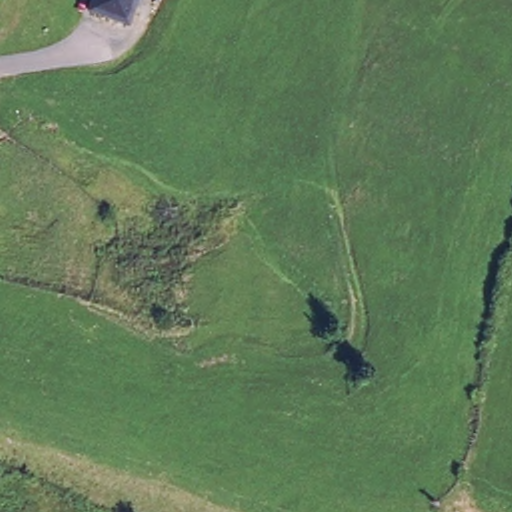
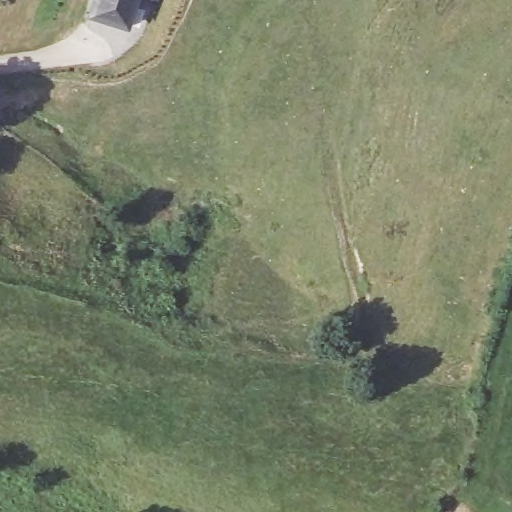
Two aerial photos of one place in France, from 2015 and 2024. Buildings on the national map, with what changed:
unchanged [(95,10),(99,0),(140,0),(133,23),(95,10)]

